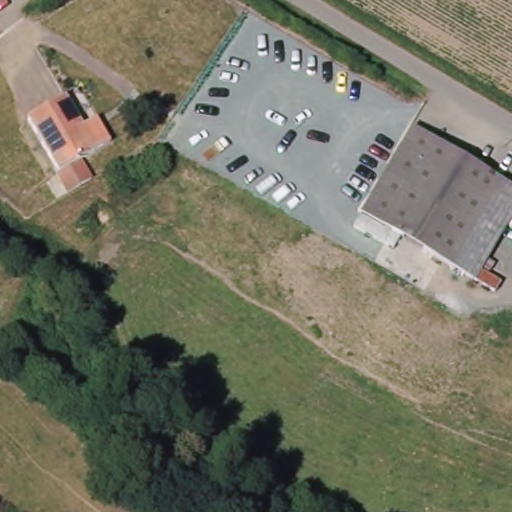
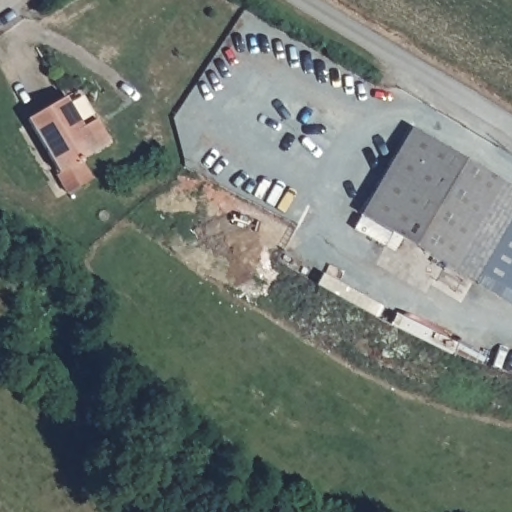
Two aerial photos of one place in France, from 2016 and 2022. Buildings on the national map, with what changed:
unchanged [(53,168),(27,113),(66,95),(83,130),(100,121),(114,152),(92,150),(75,157),(81,172),(84,177),(59,189),(58,186),(49,170),(53,168)]
unchanged [(361,214),(412,127),(512,187),(512,305),(361,214)]

